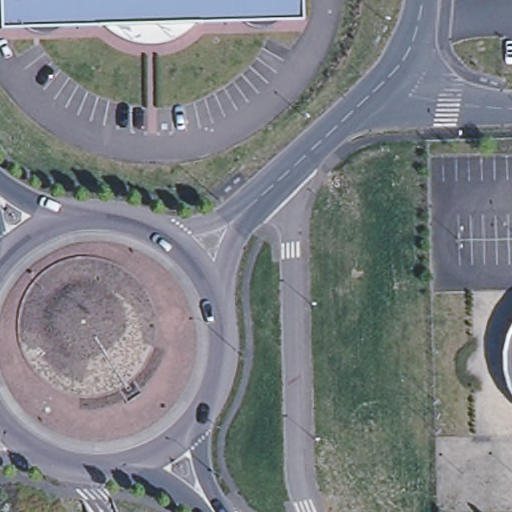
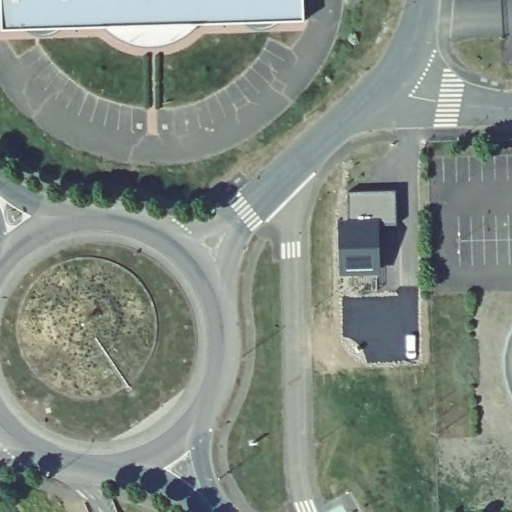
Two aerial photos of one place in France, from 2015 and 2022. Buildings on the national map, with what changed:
unchanged [(305,20),(192,23),(188,28),(179,34),(173,37),(167,39),(139,40),(130,38),(121,35),(110,26),(2,29),(1,0),(304,0),(305,20)]
new [(395,191),(396,224),(380,225),(380,274),(340,275),(338,220),(348,220),(347,192),(395,191)]

